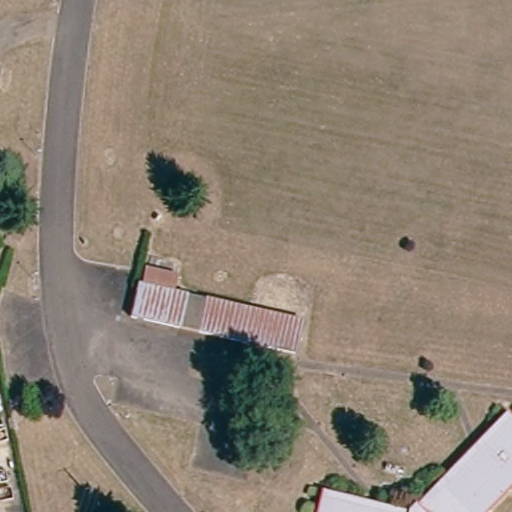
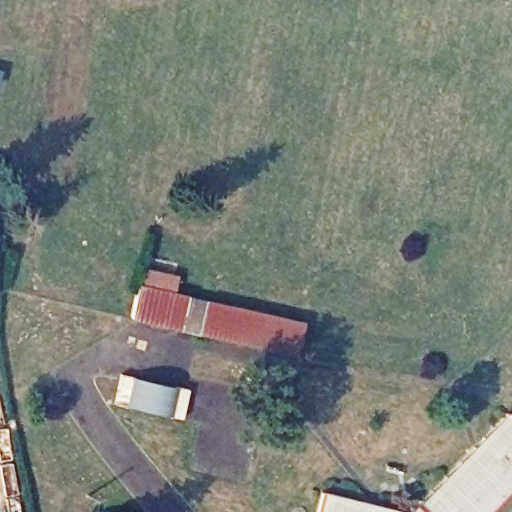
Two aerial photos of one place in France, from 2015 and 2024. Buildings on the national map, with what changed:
unchanged [(306,321),(298,354),(136,318),(144,285),(306,321)]
new [(121,375),(188,391),(182,415),(159,410),(158,414),(114,404),(121,375)]
unchanged [(512,493),(494,512),(417,512),(512,412),(512,493)]
unchanged [(323,512),(328,492),(409,512),(323,512)]

